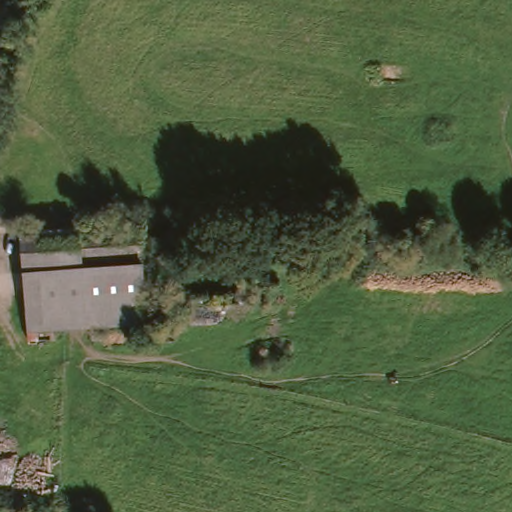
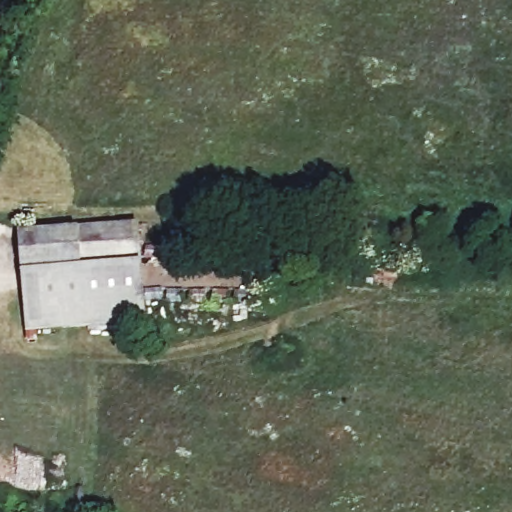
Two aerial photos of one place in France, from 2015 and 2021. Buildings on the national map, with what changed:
unchanged [(85,243),(139,239),(146,323),(27,332),(18,227),(32,226),(82,218),(83,226),(85,243)]

